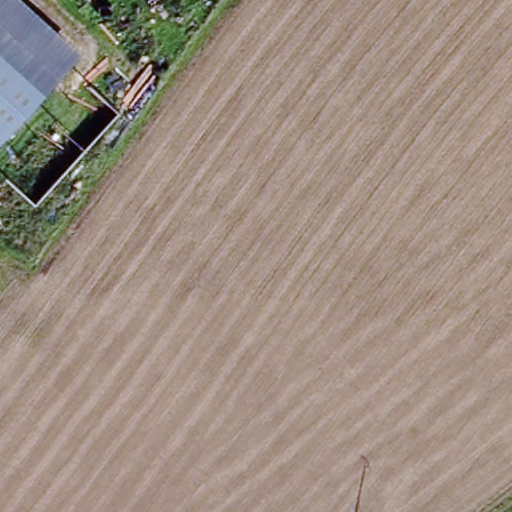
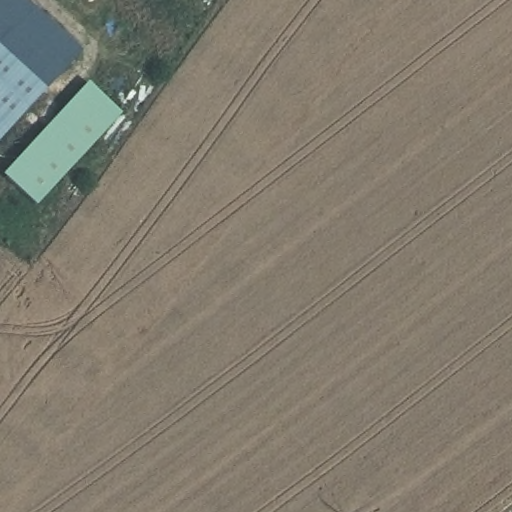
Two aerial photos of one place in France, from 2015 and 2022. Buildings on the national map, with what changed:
unchanged [(85,51),(45,95),(0,53),(0,0),(26,0),(85,51)]
unchanged [(45,95),(0,146),(0,53),(45,95)]
new [(122,113),(36,207),(2,175),(87,82),(122,113)]

